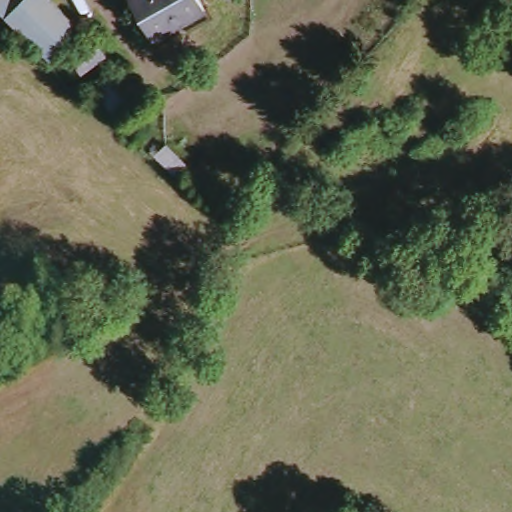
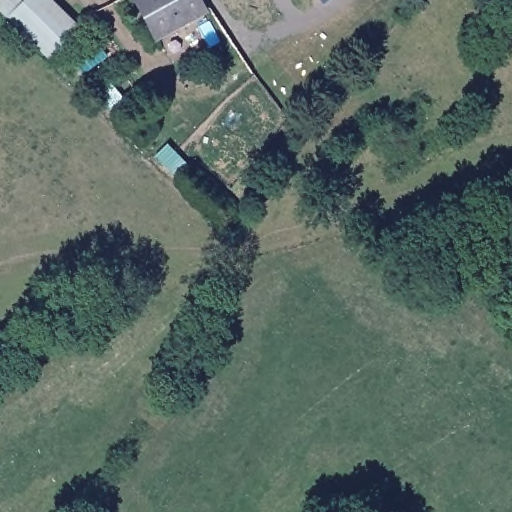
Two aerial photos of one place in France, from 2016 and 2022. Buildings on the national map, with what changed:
unchanged [(0,0),(63,0),(86,22),(51,59),(0,7),(0,0)]
unchanged [(205,8),(159,35),(140,0),(202,0),(205,8)]

